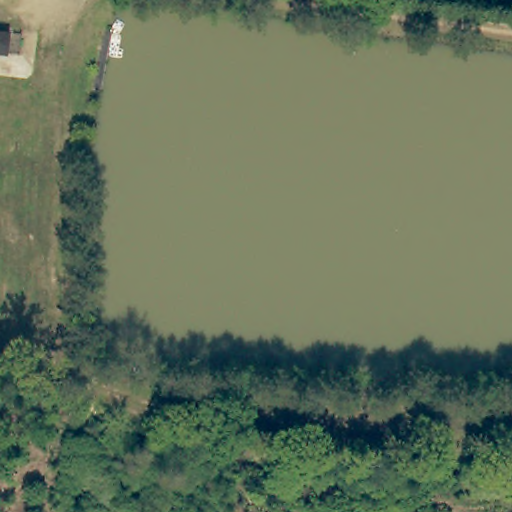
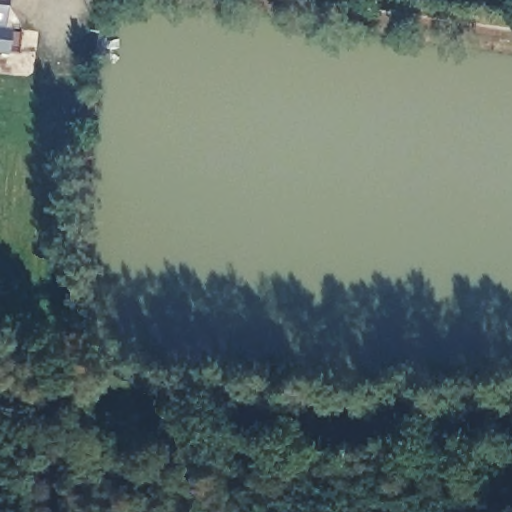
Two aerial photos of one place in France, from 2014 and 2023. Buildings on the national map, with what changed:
unchanged [(11,30),(22,31),(20,56),(8,56),(0,55),(0,29),(11,30)]

